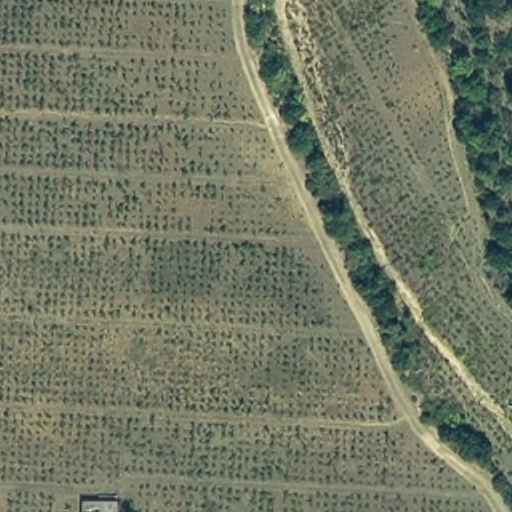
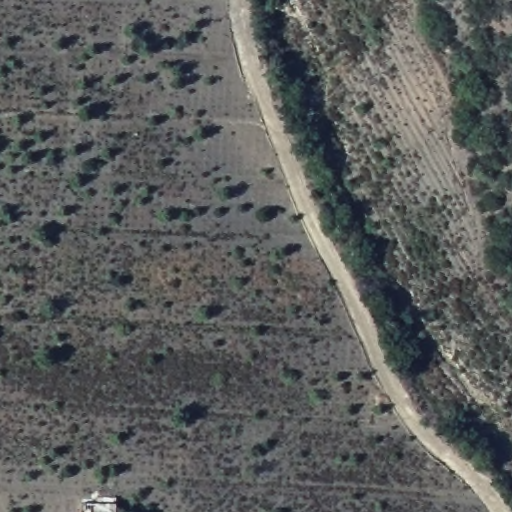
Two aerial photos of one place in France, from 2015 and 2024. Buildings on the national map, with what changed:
unchanged [(118,501),(118,512),(81,512),(81,500),(118,501)]

